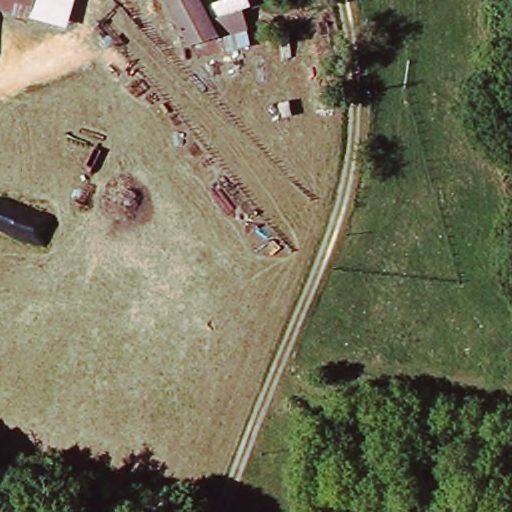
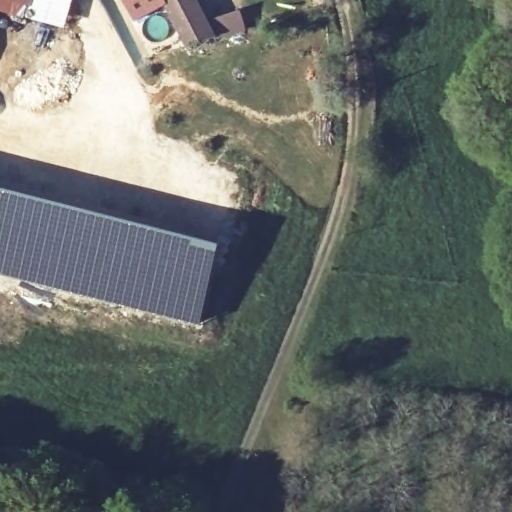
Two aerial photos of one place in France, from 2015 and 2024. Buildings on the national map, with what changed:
unchanged [(23,0),(21,9),(0,4),(0,0),(23,0)]
unchanged [(21,9),(23,0),(67,0),(66,3),(63,19),(21,9)]
unchanged [(201,0),(215,25),(249,18),(255,32),(227,39),(228,47),(220,49),(219,43),(211,45),(207,36),(192,39),(170,0),(201,0)]
new [(224,243),(202,323),(47,287),(0,274),(0,185),(224,243)]

